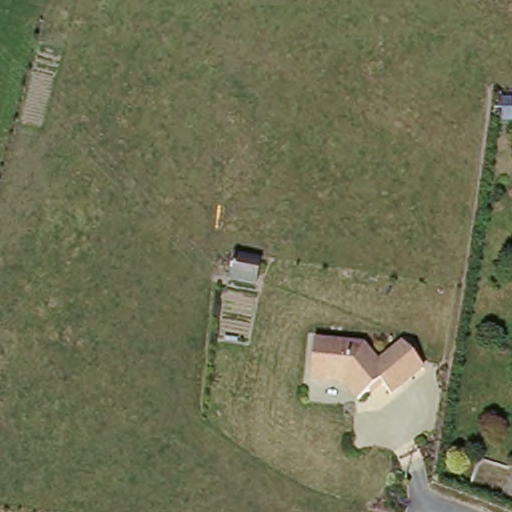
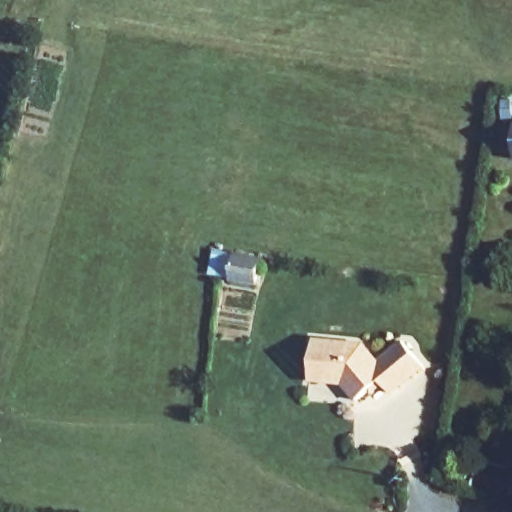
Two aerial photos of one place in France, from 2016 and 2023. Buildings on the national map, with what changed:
unchanged [(264,252),(258,278),(233,274),(237,247),(264,252)]
unchanged [(317,344),(365,346),(378,361),(405,346),(422,368),(403,387),(384,383),(353,400),(343,383),(313,380),(317,344)]

